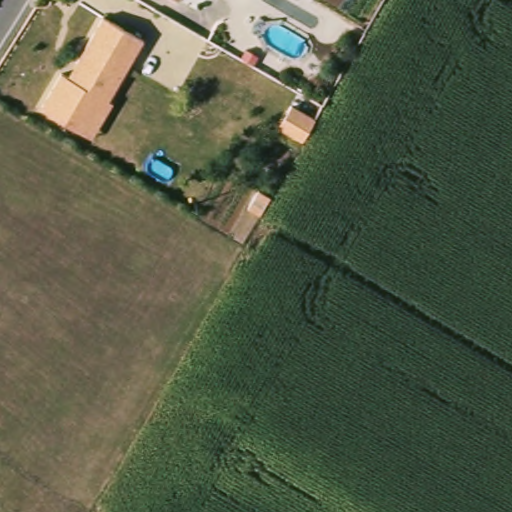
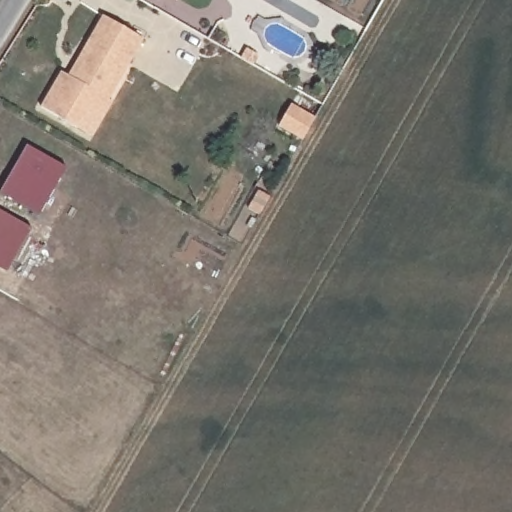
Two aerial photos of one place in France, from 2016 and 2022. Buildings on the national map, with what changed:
unchanged [(178,2),(175,0),(180,0),(178,2)]
unchanged [(91,137),(76,129),(39,108),(60,73),(67,77),(101,16),(142,39),(106,100),(111,103),(91,137)]
new [(1,194),(28,147),(66,169),(40,216),(1,194)]
new [(0,210),(31,228),(8,271),(0,266),(0,210)]

